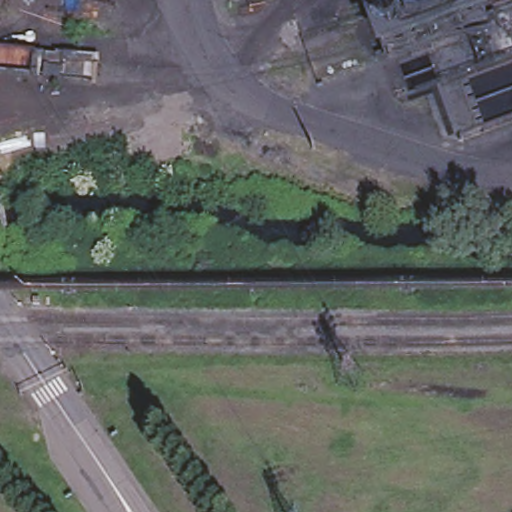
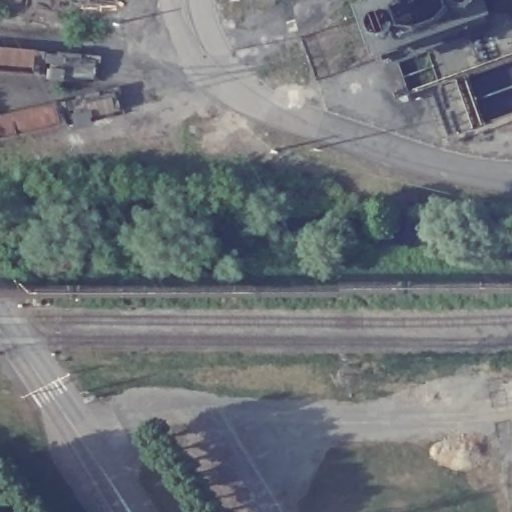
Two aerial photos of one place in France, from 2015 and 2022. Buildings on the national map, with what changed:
unchanged [(393,53),(380,19),(429,0),(497,0),(502,13),(393,53)]

